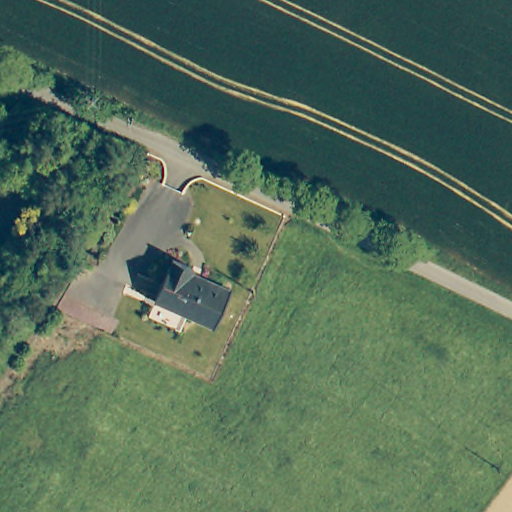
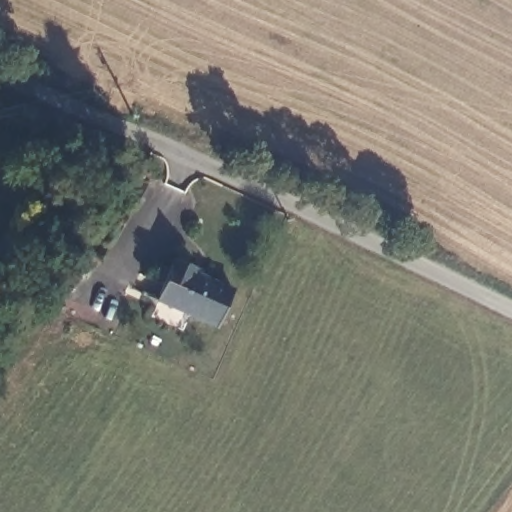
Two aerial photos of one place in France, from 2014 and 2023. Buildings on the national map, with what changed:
unchanged [(195,270),(193,274),(232,290),(216,327),(157,301),(173,260),(195,270)]

